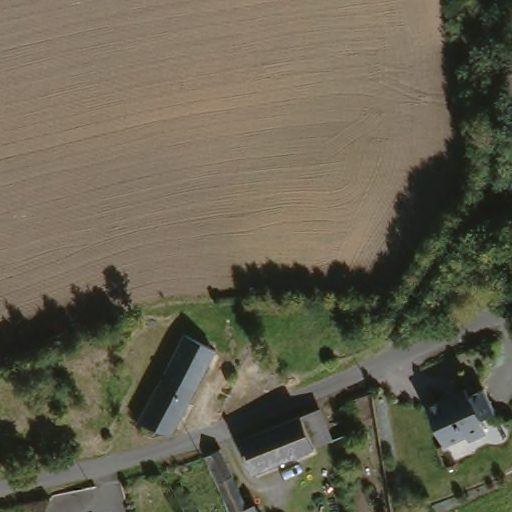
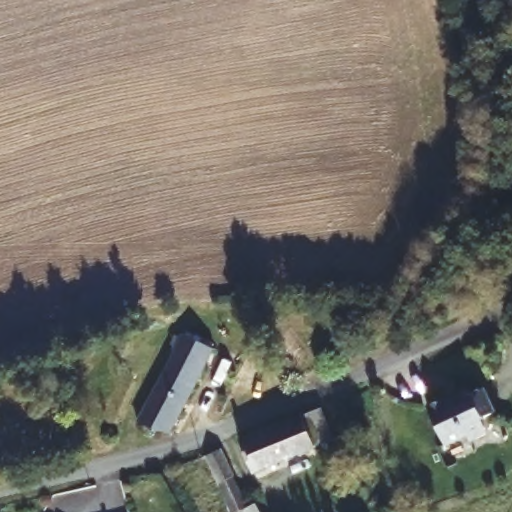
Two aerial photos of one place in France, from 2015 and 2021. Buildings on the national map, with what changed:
unchanged [(186,437),(158,432),(169,341),(196,346),(195,349),(186,437)]
unchanged [(496,417),(444,444),(426,413),(480,385),(496,417)]
unchanged [(236,444),(296,418),(298,422),(316,415),(327,441),(310,449),(248,476),(236,444)]
unchanged [(204,458),(222,451),(247,510),(244,512),(227,512),(204,458)]
unchanged [(256,506),(259,512),(244,512),(247,510),(256,506)]

